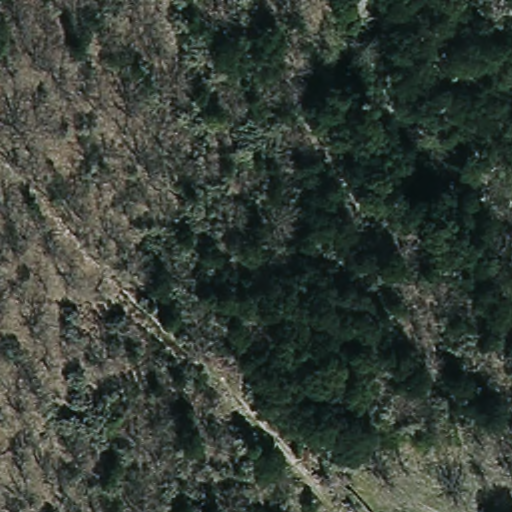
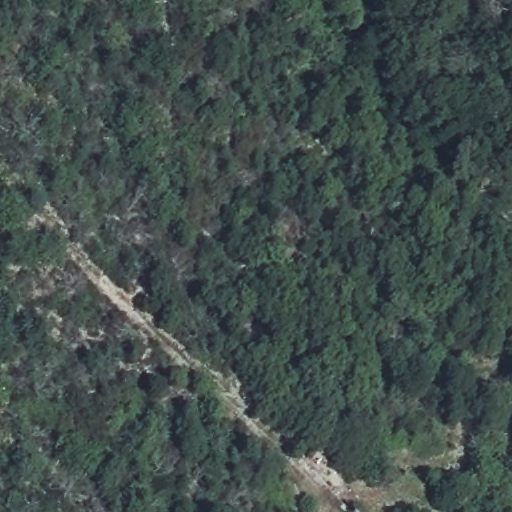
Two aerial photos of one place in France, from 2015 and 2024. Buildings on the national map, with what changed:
[]

